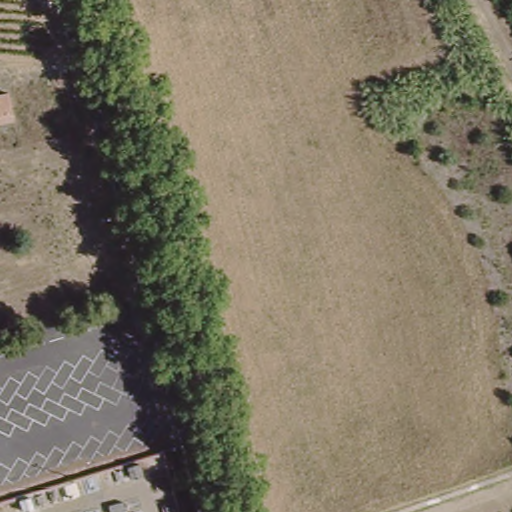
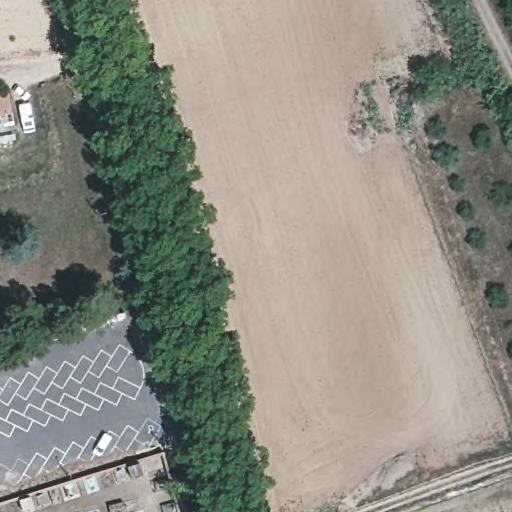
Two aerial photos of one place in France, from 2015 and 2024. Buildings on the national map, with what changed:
unchanged [(0,123),(0,102),(6,101),(10,122),(0,123)]

